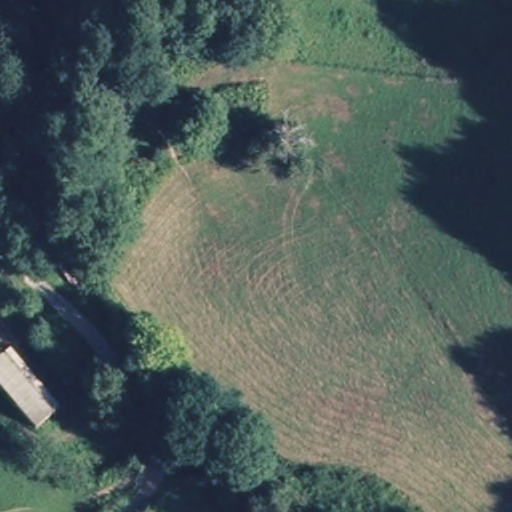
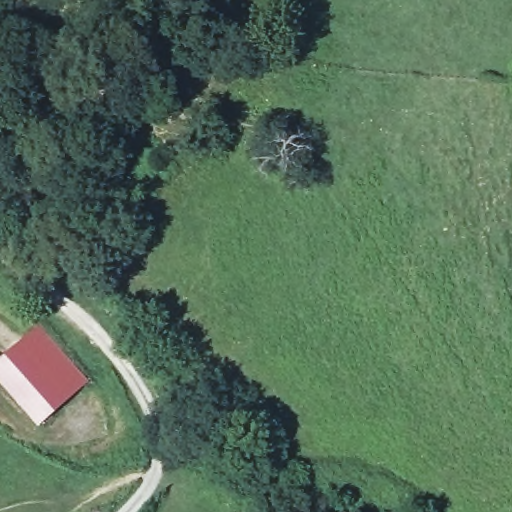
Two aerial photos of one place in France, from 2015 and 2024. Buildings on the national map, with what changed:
new [(37,326),(88,381),(63,404),(11,349),(37,326)]
unchanged [(63,404),(38,427),(0,386),(0,360),(11,349),(63,404)]

